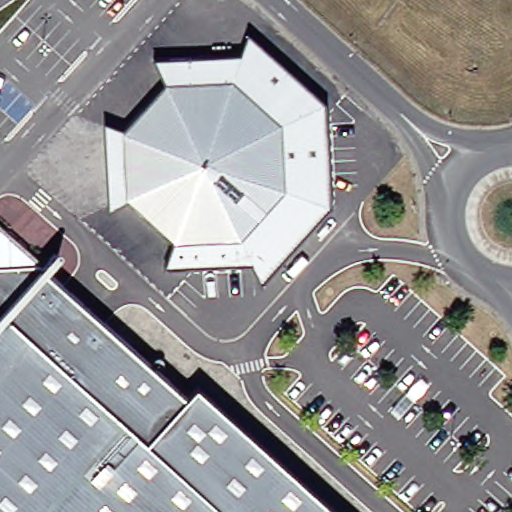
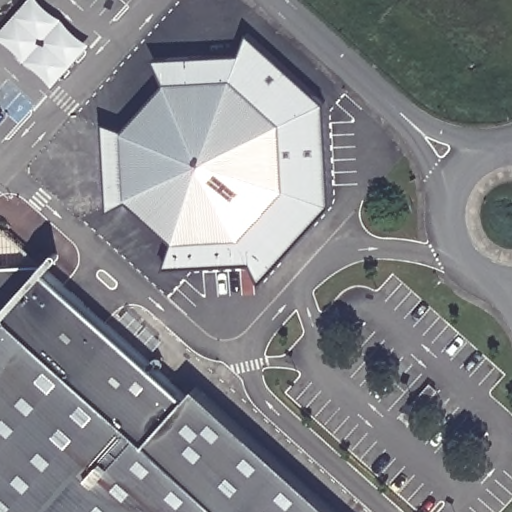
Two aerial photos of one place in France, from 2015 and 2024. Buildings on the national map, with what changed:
new [(52,87),(0,37),(30,0),(43,0),(89,44),(52,87)]
unchanged [(326,104),(331,209),(262,286),(252,266),(164,271),(173,245),(122,200),(119,132),(164,83),(153,59),(240,55),(248,33),(326,104)]
unchanged [(38,265),(45,275),(64,305),(141,420),(203,512),(0,512),(0,266),(38,264),(38,265)]
unchanged [(194,385),(337,512),(203,512),(45,275),(38,265),(38,264),(184,395),(194,385)]

